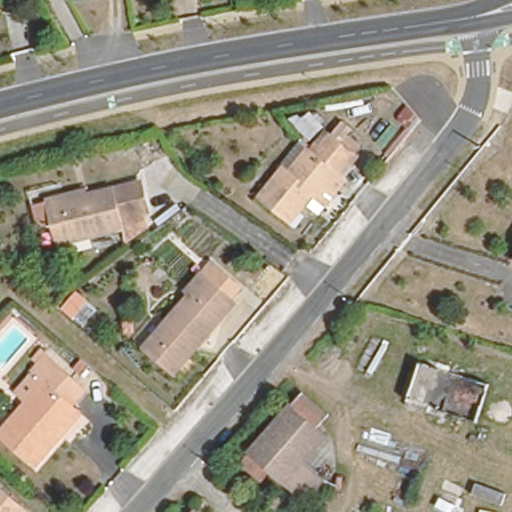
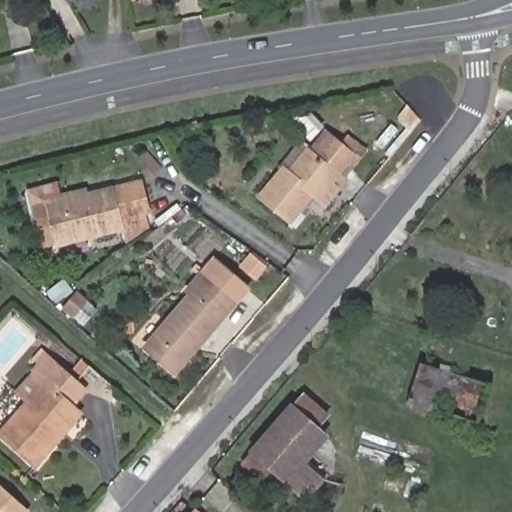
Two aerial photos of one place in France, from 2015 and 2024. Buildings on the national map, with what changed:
unchanged [(337,175),(346,182),(327,205),(315,195),(291,221),(262,196),(284,169),(289,173),(314,143),(320,147),(331,136),(355,155),(337,175)]
unchanged [(49,198),(86,189),(87,194),(115,187),(142,181),(150,214),(122,220),(124,227),(59,242),(49,198)]
unchanged [(180,366),(152,342),(196,289),(192,286),(208,268),(240,296),(180,366)]
unchanged [(40,466),(0,435),(0,426),(30,393),(15,385),(47,350),(100,393),(40,466)]
unchanged [(240,462),(249,452),(288,407),(292,403),(301,392),(328,416),(326,418),(318,427),(329,436),(306,462),(325,480),(306,502),(271,471),(261,482),(240,462)]
unchanged [(0,487),(27,511),(27,512),(0,512),(0,487)]
unchanged [(192,510),(195,512),(190,512),(192,510)]

